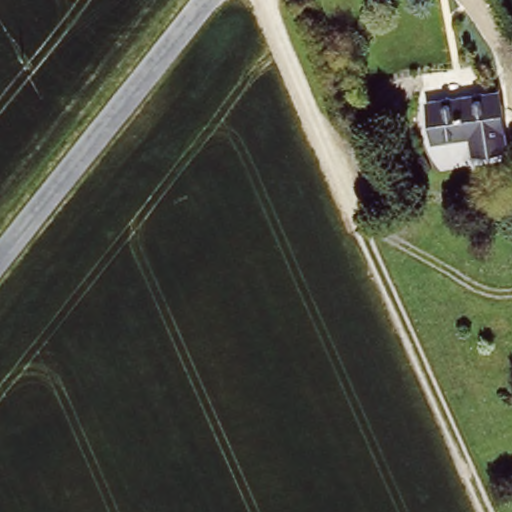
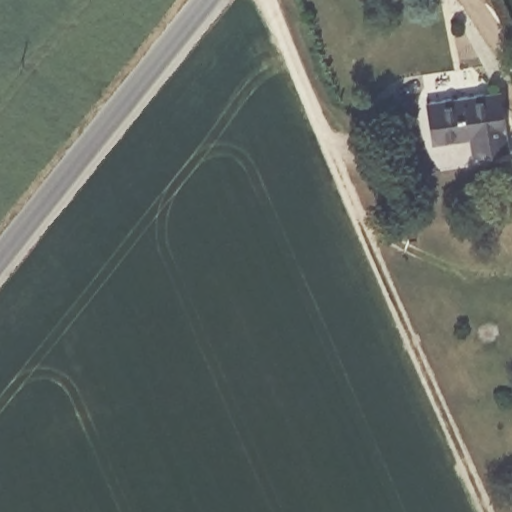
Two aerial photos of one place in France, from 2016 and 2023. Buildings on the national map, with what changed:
unchanged [(475,151),(472,136),(436,141),(430,100),(501,89),(510,146),(475,151)]

